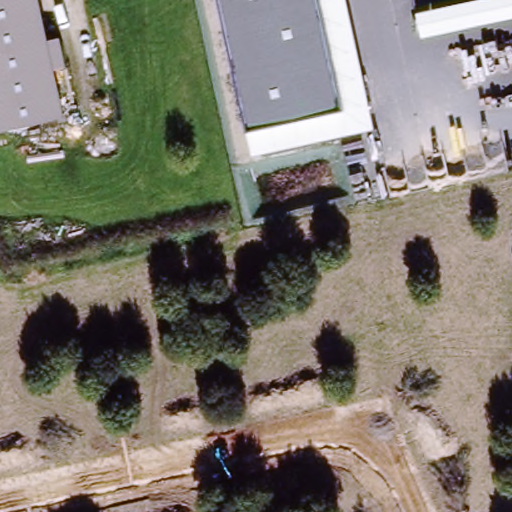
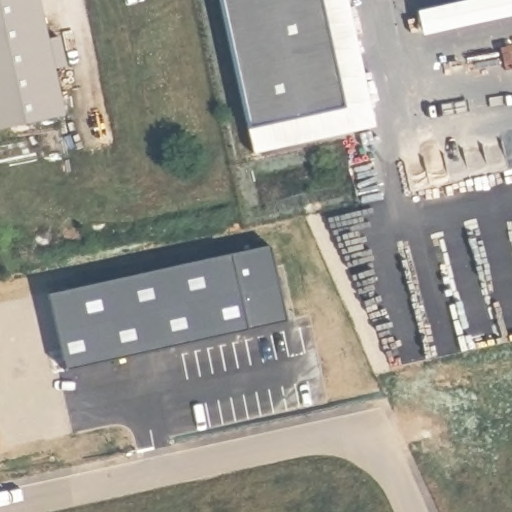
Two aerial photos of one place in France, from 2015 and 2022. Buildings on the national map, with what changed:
unchanged [(47,41),(60,37),(67,65),(55,68),(66,115),(0,131),(0,0),(39,0),(47,41)]
unchanged [(375,127),(254,154),(219,0),(348,0),(375,127)]
new [(279,254),(287,323),(63,366),(52,296),(279,254)]

